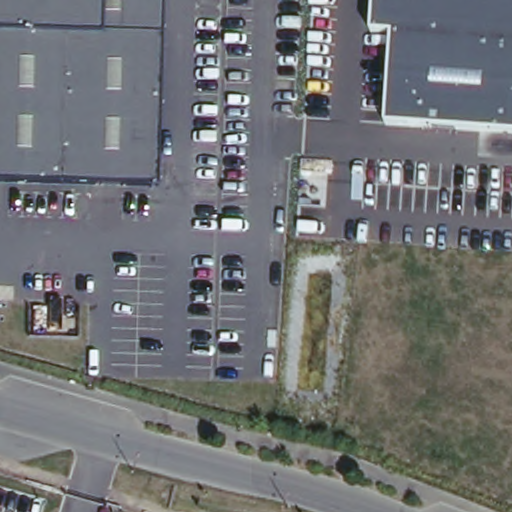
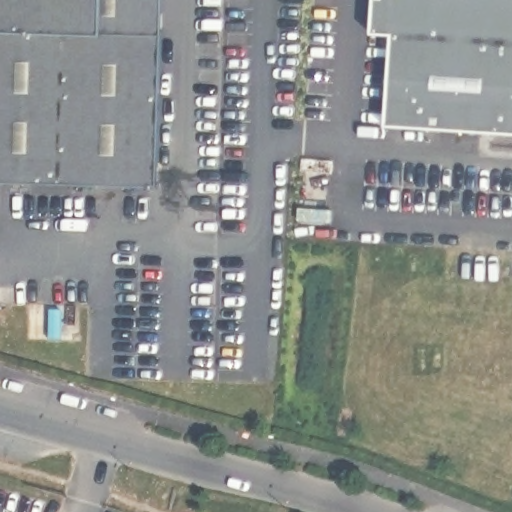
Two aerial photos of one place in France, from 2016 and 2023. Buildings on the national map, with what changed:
unchanged [(157,191),(0,187),(0,0),(162,0),(157,191)]
unchanged [(392,32),(370,30),(373,0),(512,0),(512,130),(386,122),(392,32)]

